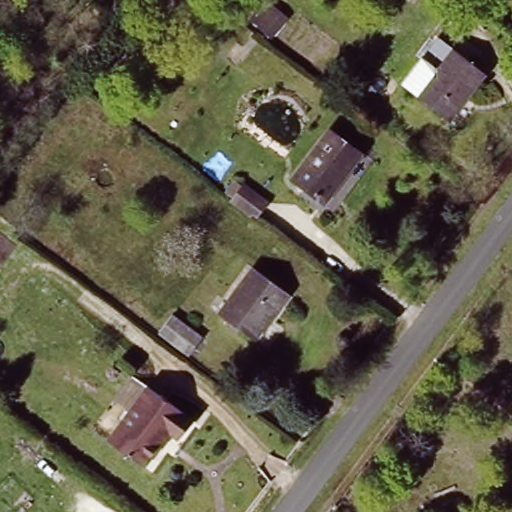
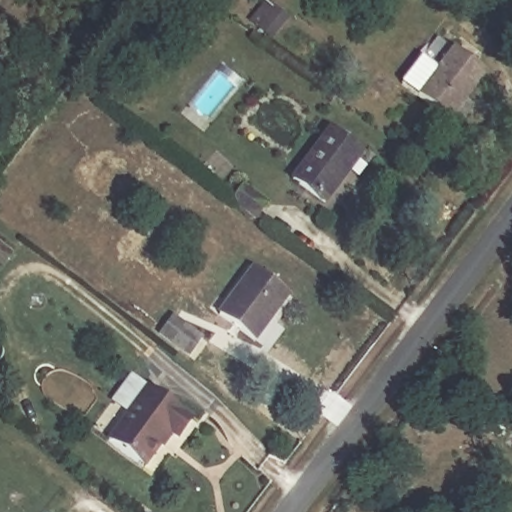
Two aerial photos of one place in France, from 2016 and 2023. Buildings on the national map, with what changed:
unchanged [(452,118),(420,94),(456,48),(487,71),(452,118)]
unchanged [(332,129),(364,153),(360,158),(325,202),(293,178),(327,134),(332,129)]
unchanged [(250,190),(273,207),(262,222),(240,204),(250,190)]
unchanged [(256,267),(290,293),(256,337),(222,312),(256,267)]
unchanged [(180,314),(210,337),(196,355),(166,332),(180,314)]
unchanged [(157,386),(199,418),(184,438),(177,432),(150,465),(115,437),(157,386)]

